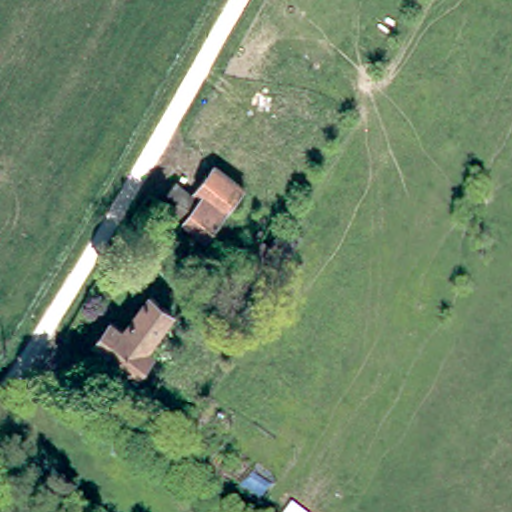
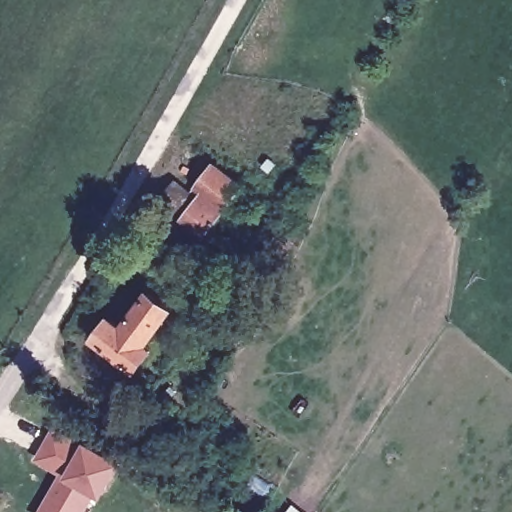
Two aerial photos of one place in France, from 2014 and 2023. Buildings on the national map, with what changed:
unchanged [(182,214),(163,200),(174,184),(189,193),(210,166),(241,187),(203,235),(179,219),(182,214)]
unchanged [(156,354),(143,373),(101,344),(114,323),(130,333),(153,299),(176,314),(151,350),(156,354)]
unchanged [(247,331),(250,334),(244,343),(241,341),(206,317),(212,308),(247,331)]
unchanged [(148,406),(155,396),(165,402),(159,413),(148,406)]
new [(104,499),(97,495),(87,512),(40,512),(61,475),(36,461),(55,427),(86,445),(87,442),(124,463),(104,499)]

